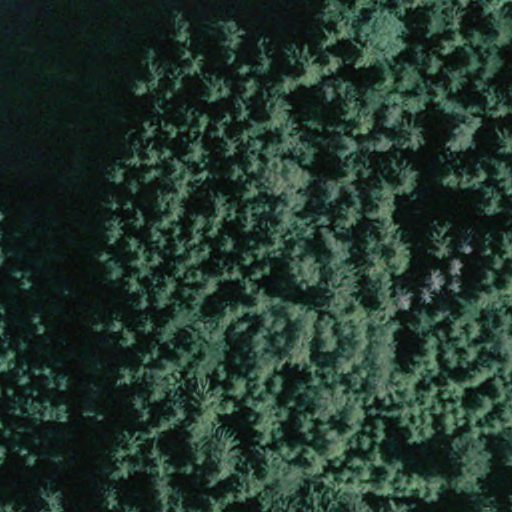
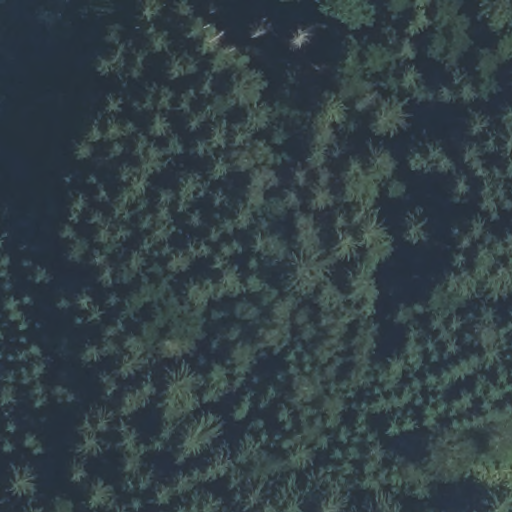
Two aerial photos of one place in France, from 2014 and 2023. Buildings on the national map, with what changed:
unchanged [(16,157),(0,152),(0,121),(25,129),(16,157)]

